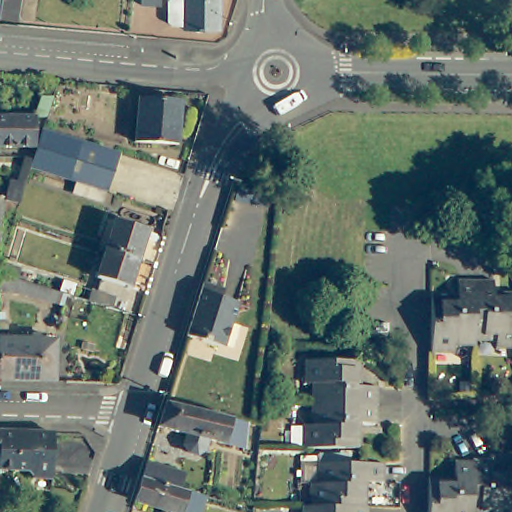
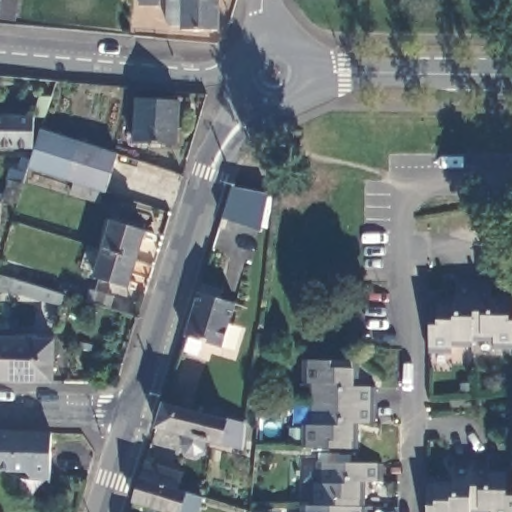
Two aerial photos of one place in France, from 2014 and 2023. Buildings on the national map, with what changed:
unchanged [(0,24),(0,0),(4,0),(0,24)]
unchanged [(2,16),(4,7),(5,4),(6,0),(24,0),(22,7),(19,18),(2,16)]
unchanged [(153,6),(136,5),(136,0),(153,0),(153,6)]
unchanged [(171,21),(171,0),(223,0),(222,29),(186,28),(186,25),(175,25),(171,21)]
unchanged [(179,102),(176,144),(134,141),(136,99),(179,102)]
unchanged [(34,118),(33,147),(0,147),(0,118),(34,118)]
unchanged [(72,191),(75,182),(28,167),(31,156),(40,129),(117,154),(105,192),(103,191),(100,201),(72,191)]
new [(261,229),(223,217),(232,186),(268,192),(261,229)]
unchanged [(1,206),(0,216),(0,206),(1,206)]
unchanged [(95,278),(104,249),(113,221),(144,231),(135,259),(126,288),(95,278)]
unchanged [(18,269),(15,280),(0,275),(0,263),(18,269)]
unchanged [(491,277),(491,294),(512,294),(512,345),(493,345),(492,337),(473,337),(473,344),(450,344),(450,350),(428,349),(429,299),(454,299),(454,277),(473,277),(491,277)]
unchanged [(37,301),(10,291),(15,280),(42,288),(37,301)]
unchanged [(189,335),(190,332),(206,282),(225,288),(222,297),(237,302),(225,342),(223,346),(189,335)]
unchanged [(107,298),(103,309),(81,302),(84,291),(107,298)]
unchanged [(48,340),(46,382),(0,381),(0,340),(48,340)]
unchanged [(357,358),(358,383),(378,384),(377,402),(377,421),(356,421),(354,446),(305,443),(305,422),(313,423),(316,379),(308,378),(309,356),(357,358)]
unchanged [(188,405),(231,416),(241,419),(235,443),(216,438),(200,434),(197,445),(191,448),(182,445),(177,440),(180,429),(151,421),(159,397),(188,405)]
unchanged [(52,432),(50,478),(30,478),(30,475),(25,470),(0,470),(0,431),(52,432)]
unchanged [(494,467),(512,468),(512,512),(429,512),(429,492),(429,478),(456,479),(457,459),(476,460),(477,457),(494,458),(494,467)]
unchanged [(173,512),(132,499),(140,477),(145,462),(183,474),(178,489),(202,496),(198,512),(173,512)]
unchanged [(387,485),(366,484),(365,507),(371,507),(371,512),(306,512),(306,505),(313,505),(314,485),(322,485),(324,464),(387,466),(387,485)]

